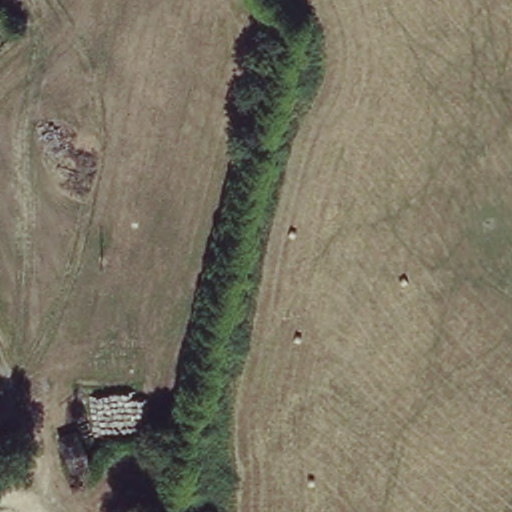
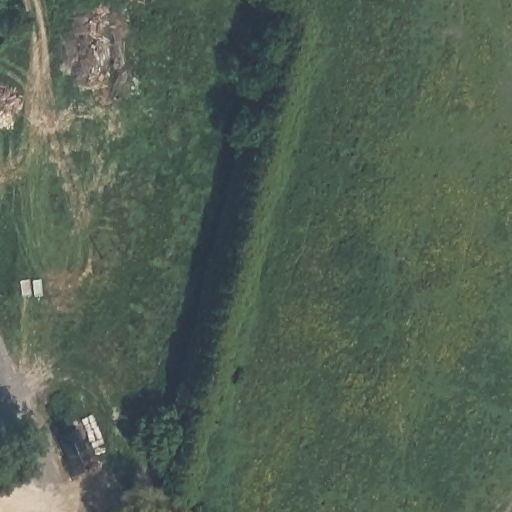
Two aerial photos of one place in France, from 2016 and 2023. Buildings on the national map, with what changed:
unchanged [(65,438),(81,431),(94,467),(77,472),(65,438)]

